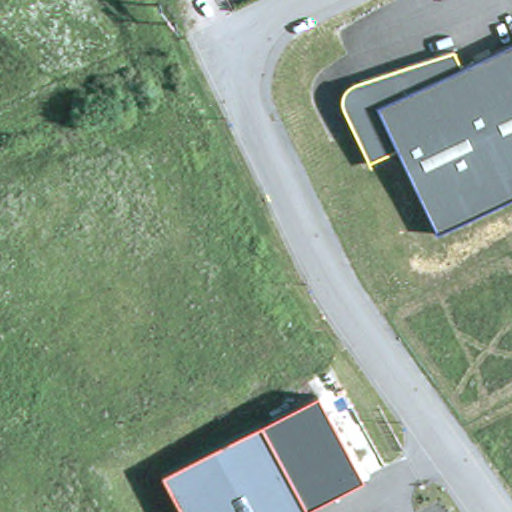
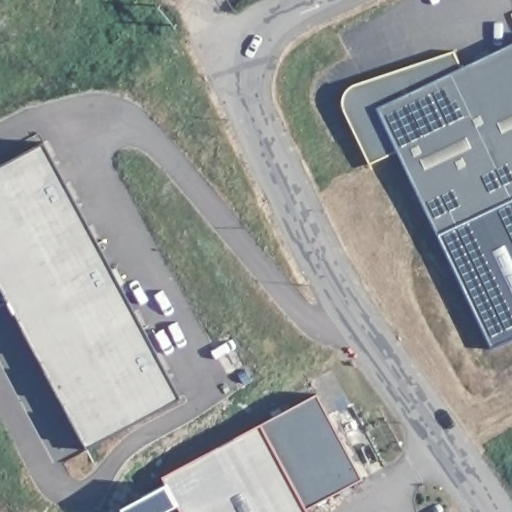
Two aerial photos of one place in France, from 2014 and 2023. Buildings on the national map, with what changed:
unchanged [(373,159),(347,110),(346,100),(349,91),(354,84),(359,80),(455,47),(463,62),(512,39),(512,195),(442,230),(398,146),(373,159)]
new [(86,449),(0,288),(0,167),(43,144),(181,398),(86,449)]
new [(442,230),(512,195),(512,339),(493,347),(442,230)]
unchanged [(319,397),(356,478),(311,505),(266,420),(319,397)]
unchanged [(266,420),(311,505),(315,512),(185,512),(164,473),(266,420)]
new [(181,503),(166,512),(123,512),(121,507),(169,481),(181,503)]

